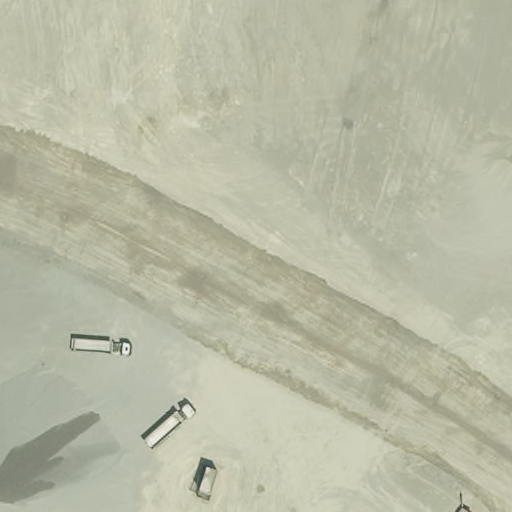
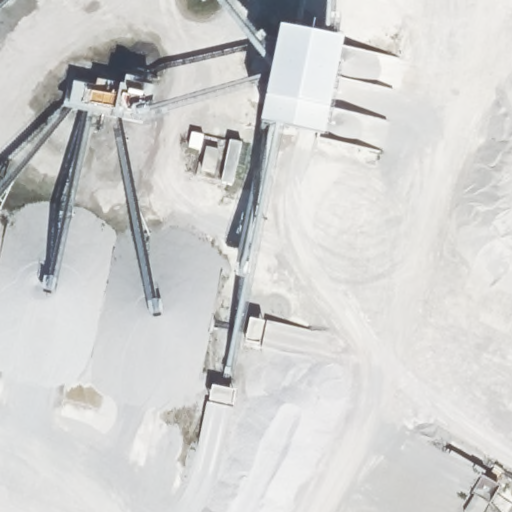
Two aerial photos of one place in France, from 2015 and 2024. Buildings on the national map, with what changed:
new [(329,116),(323,140),(279,131),(268,129),(261,127),(268,102),(271,79),(273,70),(279,35),(290,37),(325,44),(344,47),(329,116)]

